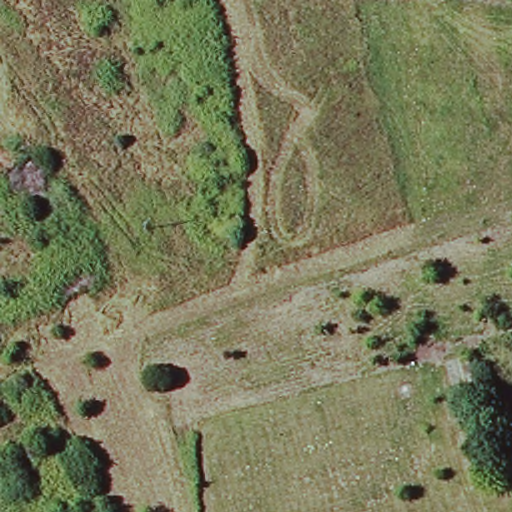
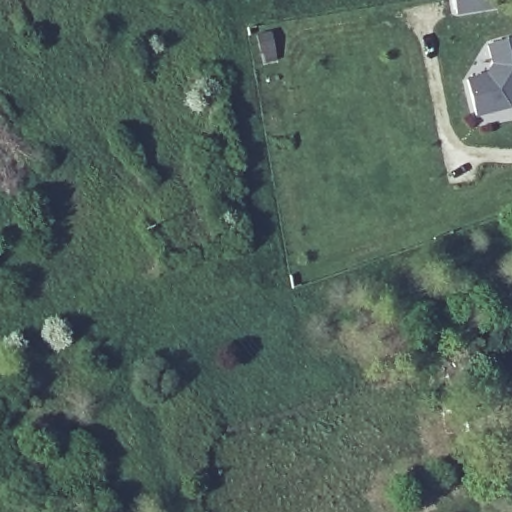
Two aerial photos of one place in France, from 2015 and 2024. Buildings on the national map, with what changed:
new [(495,8),(458,14),(456,0),(494,0),(495,8)]
new [(510,110),(474,118),(465,79),(485,74),(491,64),(486,45),(512,39),(512,106),(510,110)]

